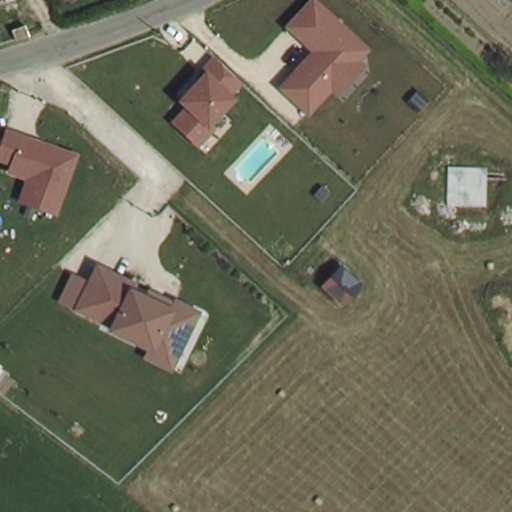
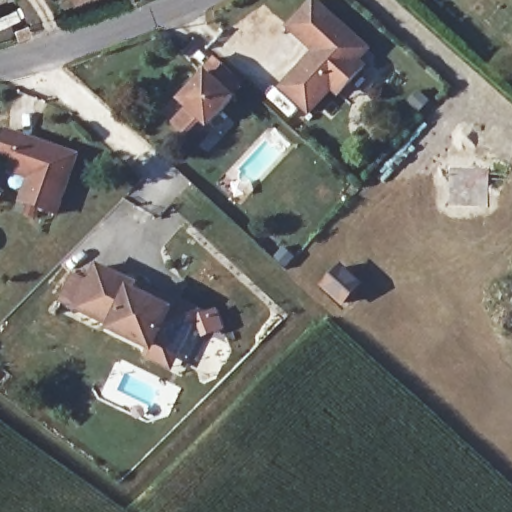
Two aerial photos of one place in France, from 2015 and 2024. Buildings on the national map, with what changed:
unchanged [(362,62),(368,67),(339,97),(335,92),(312,117),(280,89),(312,52),(286,29),(311,0),(320,0),(371,49),(362,62)]
unchanged [(241,85),(232,95),(237,97),(212,127),(215,130),(199,147),(172,122),(184,108),(177,102),(202,74),(200,71),(212,56),(241,85)]
unchanged [(61,215),(20,202),(27,179),(10,172),(14,165),(0,160),(0,148),(7,129),(80,156),(61,215)]
unchanged [(89,281),(98,265),(123,277),(134,273),(140,286),(172,301),(174,297),(202,312),(172,373),(144,361),(147,351),(110,332),(111,328),(60,302),(74,275),(89,281)]

